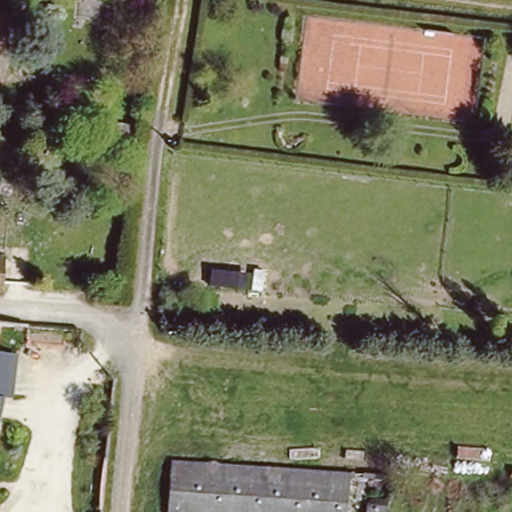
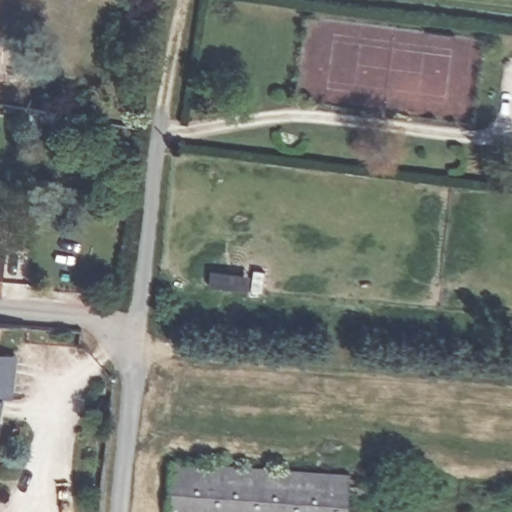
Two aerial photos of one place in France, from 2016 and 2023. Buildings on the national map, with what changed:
unchanged [(0,293),(0,255),(6,255),(3,293),(0,293)]
unchanged [(210,274),(252,277),(254,271),(265,271),(263,289),(211,285),(210,274)]
unchanged [(25,395),(7,394),(0,393),(0,319),(31,321),(25,395)]
unchanged [(7,394),(0,429),(0,393),(7,394)]
unchanged [(386,512),(167,512),(170,461),(388,478),(386,512)]

